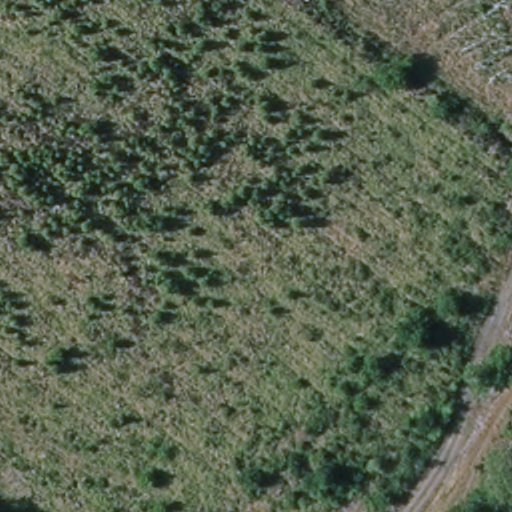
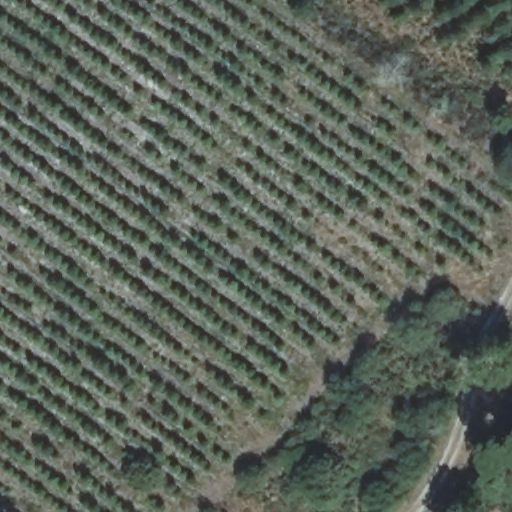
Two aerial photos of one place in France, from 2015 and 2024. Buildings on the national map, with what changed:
unchanged [(505,465),(512,472),(512,512),(465,512),(463,510),(505,465)]

